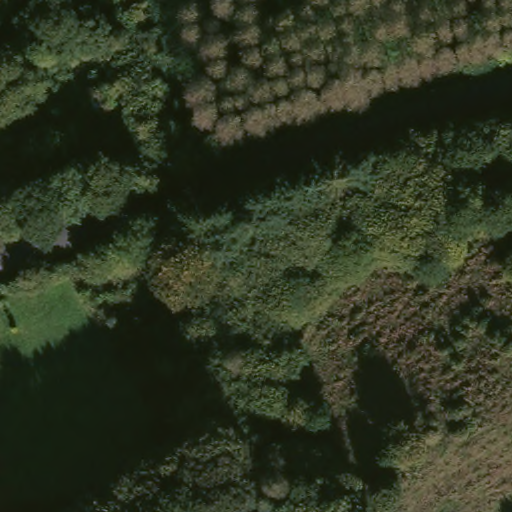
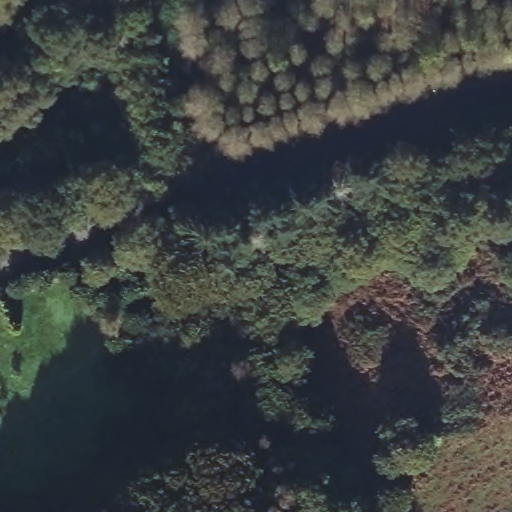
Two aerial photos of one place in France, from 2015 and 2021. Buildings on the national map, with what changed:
[]

